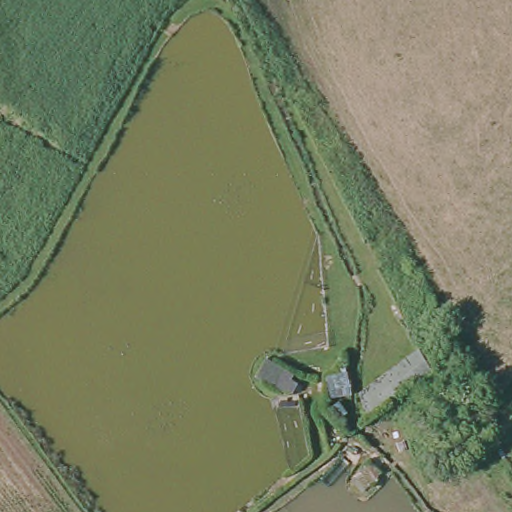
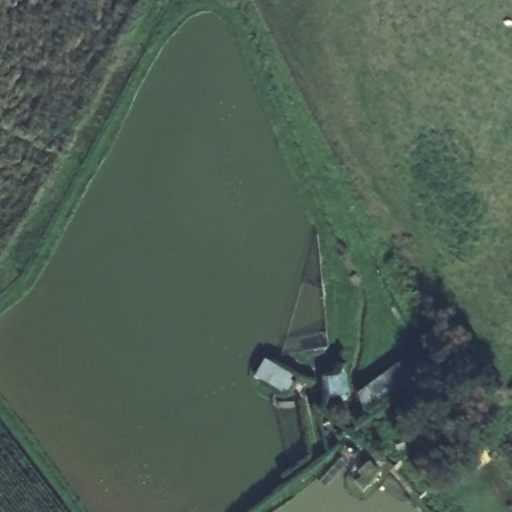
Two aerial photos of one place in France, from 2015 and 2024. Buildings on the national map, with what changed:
unchanged [(431,370),(370,413),(357,395),(418,349),(431,370)]
unchanged [(345,370),(350,398),(328,402),(325,377),(345,370)]

